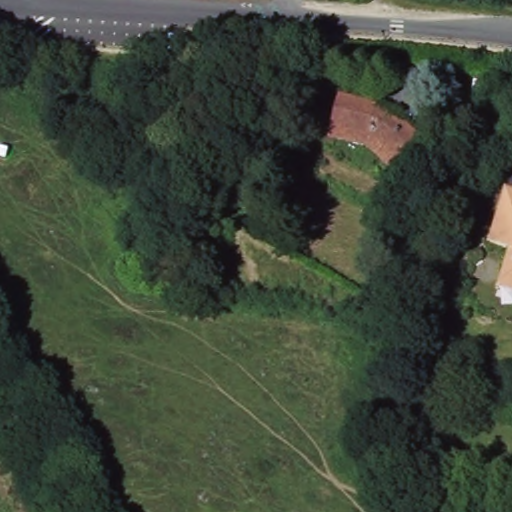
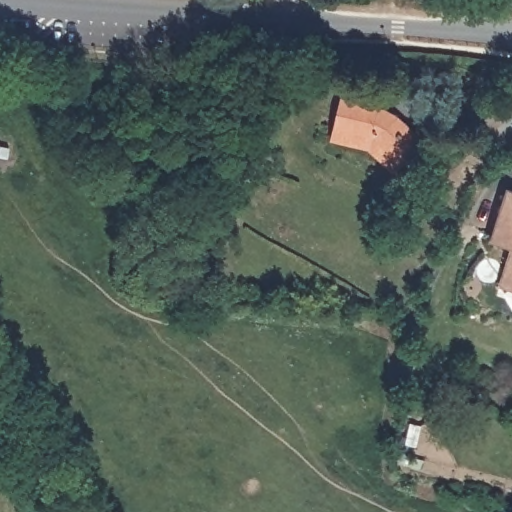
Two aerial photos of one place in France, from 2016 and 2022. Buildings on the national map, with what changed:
unchanged [(343,96),(351,98),(385,107),(383,114),(388,117),(377,135),(335,127),(337,117),(343,96)]
unchanged [(388,117),(393,122),(400,118),(428,147),(410,168),(377,135),(388,117)]
unchanged [(502,275),(510,247),(491,242),(507,191),(512,192),(512,293),(498,288),(502,275)]

